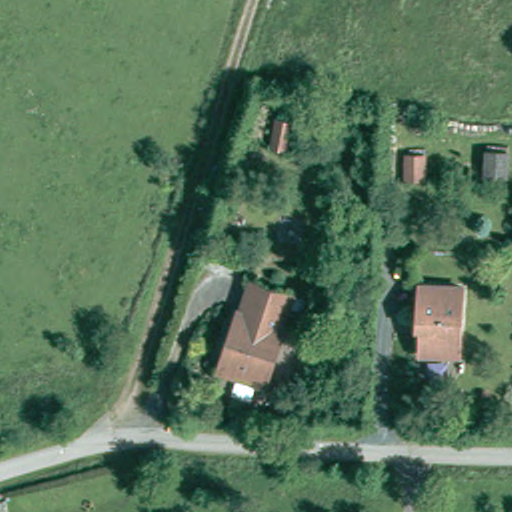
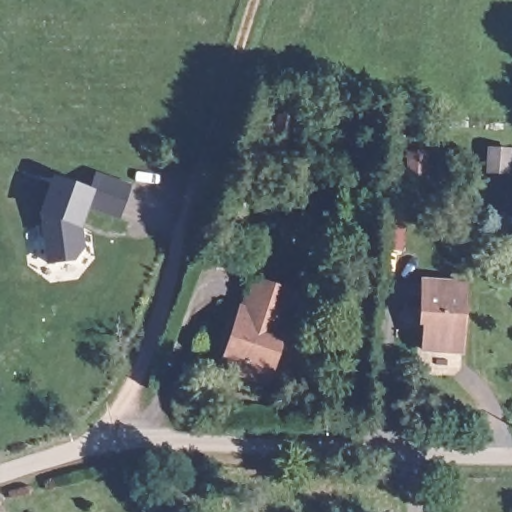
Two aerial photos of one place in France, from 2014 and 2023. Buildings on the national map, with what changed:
unchanged [(508,175),(487,173),(490,148),(510,150),(508,175)]
new [(132,187),(120,222),(87,211),(82,227),(85,249),(73,262),(45,265),(38,215),(54,174),(90,187),(95,172),(132,187)]
unchanged [(293,292),(284,320),(287,321),(267,383),(220,367),(240,306),(243,307),(252,278),(293,292)]
unchanged [(425,282),(466,285),(462,352),(423,350),(425,322),(422,322),(421,322),(423,282),(425,282)]

